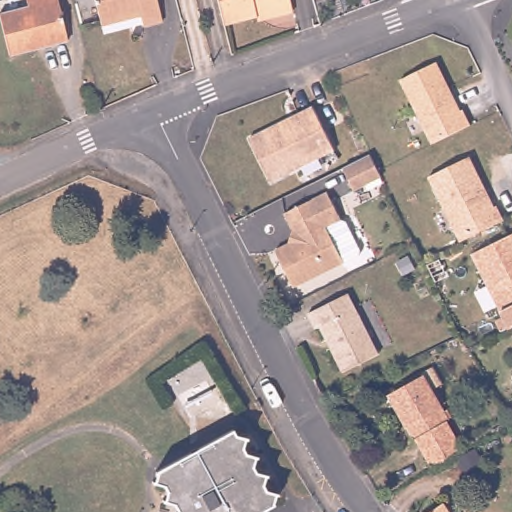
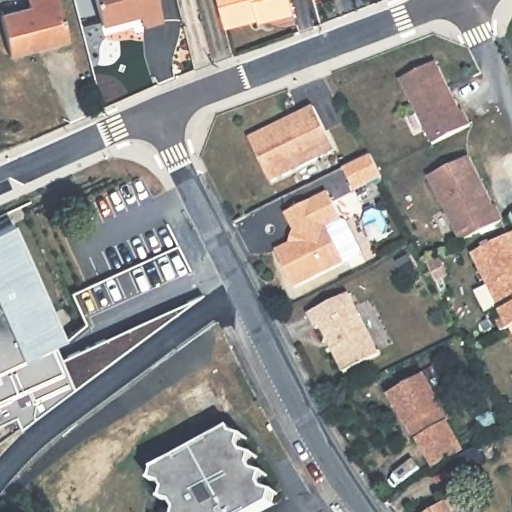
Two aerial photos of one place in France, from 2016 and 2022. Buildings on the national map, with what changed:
unchanged [(32,5),(31,0),(62,0),(71,39),(11,53),(2,13),(32,5)]
unchanged [(158,0),(163,20),(143,25),(139,12),(101,22),(97,0),(158,0)]
unchanged [(294,0),(296,6),(277,13),(276,7),(270,10),(246,18),(222,23),(216,0),(294,0)]
unchanged [(437,60),(461,109),(463,107),(471,123),(434,141),(433,141),(401,77),(437,60)]
unchanged [(250,136),(314,104),(336,148),(272,179),(250,136)]
unchanged [(371,151),(379,168),(382,174),(355,187),(344,165),(371,151)]
unchanged [(429,175),(470,155),(495,205),(497,204),(504,218),(464,238),(461,239),(429,175)]
unchanged [(341,222),(346,223),(361,253),(359,258),(294,290),(276,253),(290,246),(294,232),(286,216),(328,195),(341,222)]
new [(67,342),(56,347),(61,358),(204,293),(21,431),(15,418),(0,424),(0,230),(13,225),(67,342)]
unchanged [(474,251),(512,232),(512,304),(502,309),(474,251)]
unchanged [(378,352),(343,369),(320,324),(316,326),(308,311),(349,291),(378,352)]
unchanged [(405,418),(437,400),(464,448),(465,449),(433,467),(405,418)]
unchanged [(173,509),(156,504),(160,488),(144,483),(145,475),(229,431),(226,440),(235,441),(234,455),(250,453),(250,471),(269,470),(269,488),(280,491),(278,502),(249,512),(173,512),(173,509)]
unchanged [(445,501),(453,512),(427,512),(445,501)]

